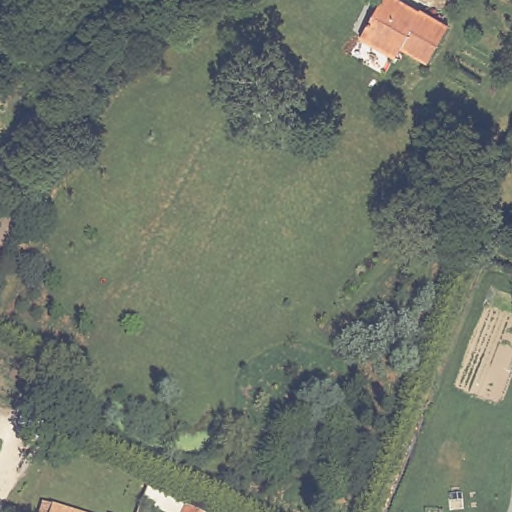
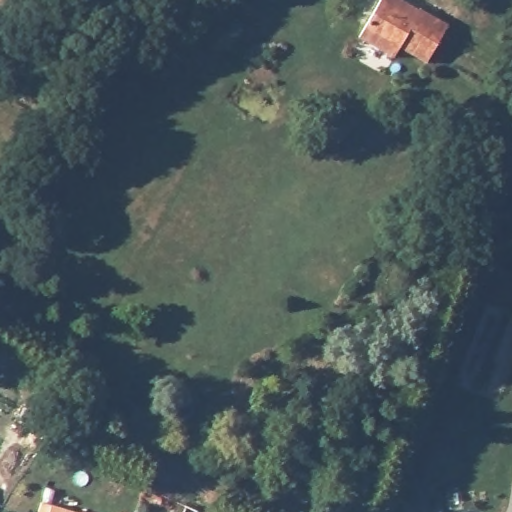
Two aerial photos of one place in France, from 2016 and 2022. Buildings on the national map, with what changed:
unchanged [(452,22),(432,59),(401,43),(396,53),(359,31),(376,0),(410,0),(452,22)]
unchanged [(94,512),(39,512),(44,495),(94,512)]
unchanged [(196,512),(178,512),(180,506),(196,512)]

